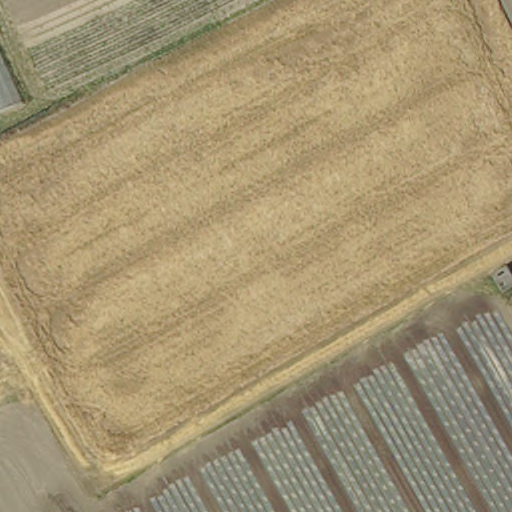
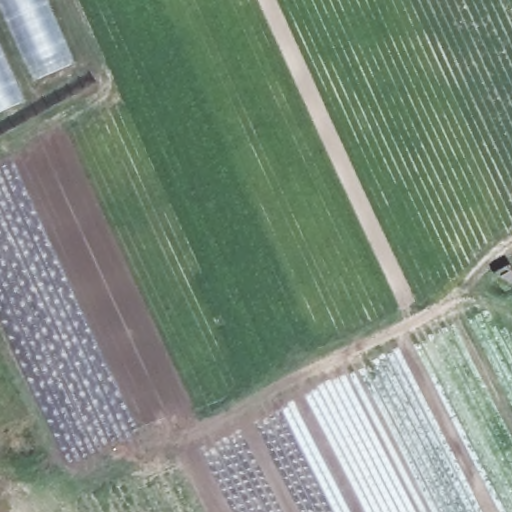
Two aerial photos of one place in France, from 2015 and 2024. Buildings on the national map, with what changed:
new [(44,0),(72,64),(32,81),(0,8),(0,0),(44,0)]
new [(24,101),(0,111),(0,47),(24,101)]

